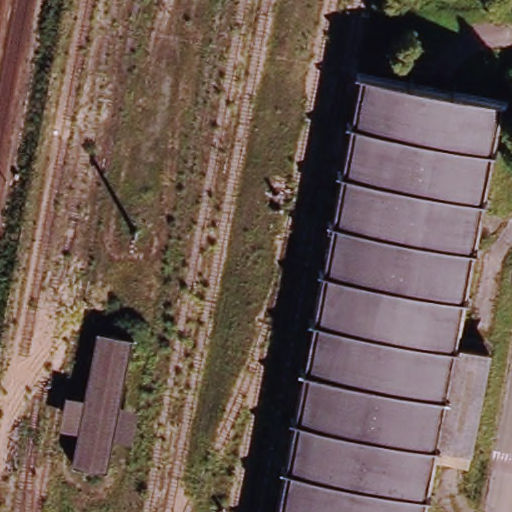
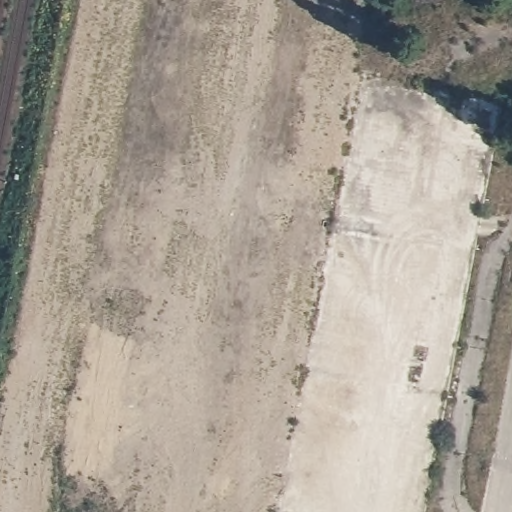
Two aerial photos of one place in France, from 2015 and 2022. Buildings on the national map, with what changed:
demolished [(272,512),(355,64),(499,90),(454,329),(436,422),(419,512),(272,512)]
unchanged [(98,339),(133,346),(108,476),(75,471),(98,339)]

